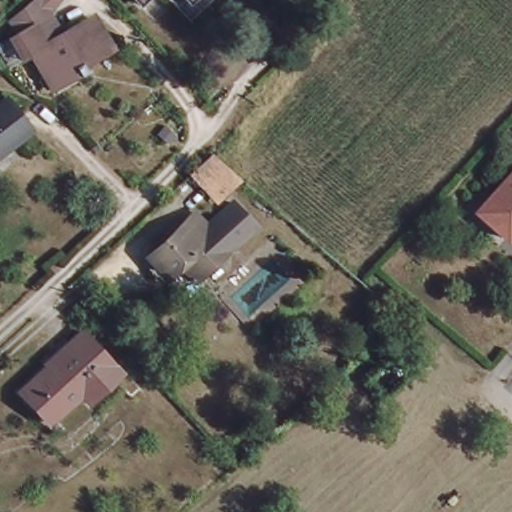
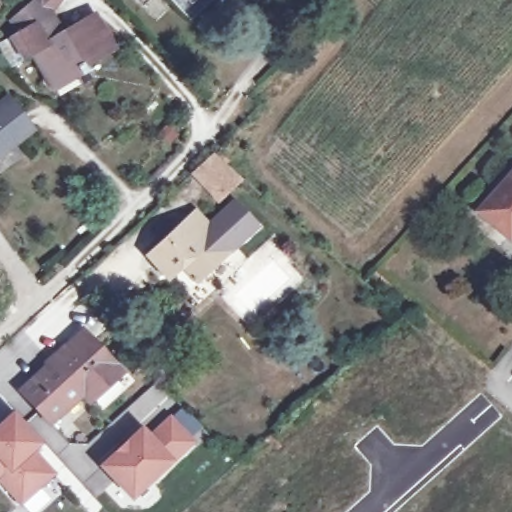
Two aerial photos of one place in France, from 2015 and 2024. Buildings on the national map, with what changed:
unchanged [(18,37),(7,16),(25,0),(45,0),(54,16),(18,37)]
unchanged [(138,0),(154,0),(146,9),(138,0)]
unchanged [(187,0),(199,0),(193,6),(187,0)]
unchanged [(62,30),(68,40),(99,23),(116,51),(87,67),(93,76),(81,83),(78,80),(57,91),(39,59),(33,62),(18,37),(54,16),(62,30)]
unchanged [(40,133),(0,164),(0,114),(16,101),(40,133)]
unchanged [(208,152),(208,151),(220,162),(232,174),(213,195),(190,168),(208,152)]
unchanged [(477,211),(512,170),(512,232),(507,238),(477,211)]
unchanged [(191,212),(203,225),(228,200),(251,225),(226,249),(189,281),(172,262),(162,271),(146,255),(191,212)]
unchanged [(114,379),(91,401),(83,392),(52,421),(23,390),(53,361),(51,359),(83,331),(121,372),(114,379)]
new [(13,412),(40,442),(35,446),(0,444),(0,425),(13,412)]
new [(133,496),(104,465),(143,427),(151,436),(171,416),(193,440),(133,496)]
new [(37,512),(32,512),(22,501),(0,478),(0,444),(35,446),(33,448),(54,471),(39,485),(51,498),(37,512)]

